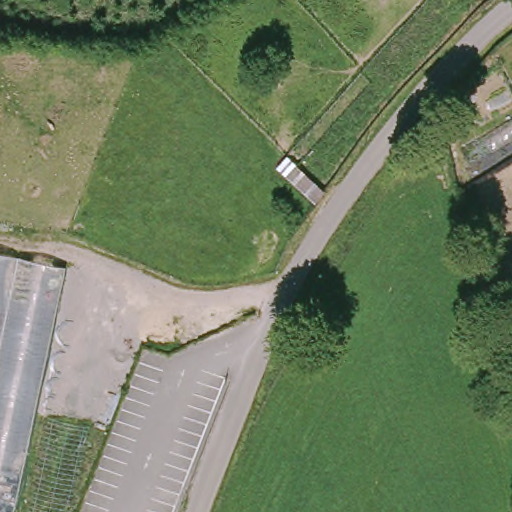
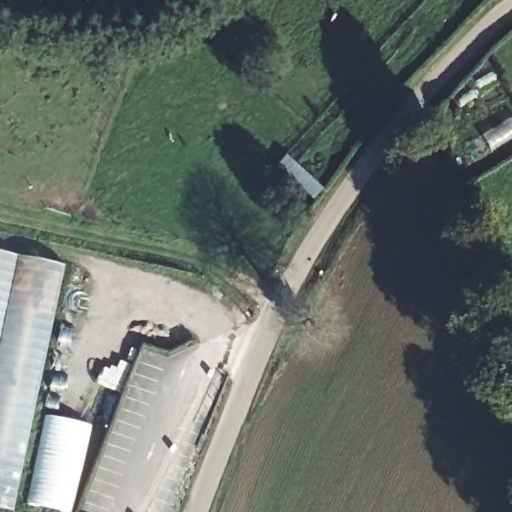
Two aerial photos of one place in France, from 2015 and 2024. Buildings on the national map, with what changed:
unchanged [(15,512),(0,509),(0,251),(68,264),(15,512)]
new [(86,425),(69,512),(60,512),(31,507),(49,418),(86,425)]

